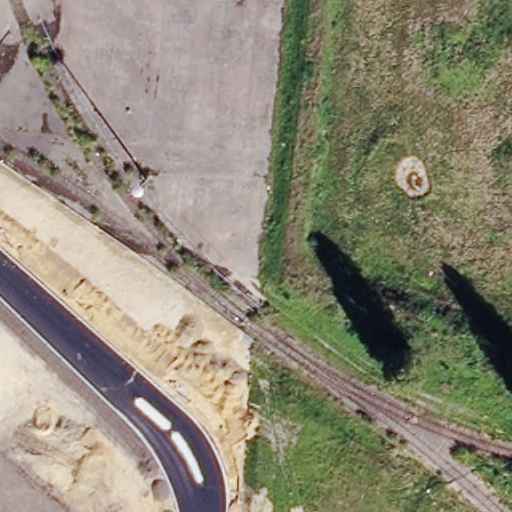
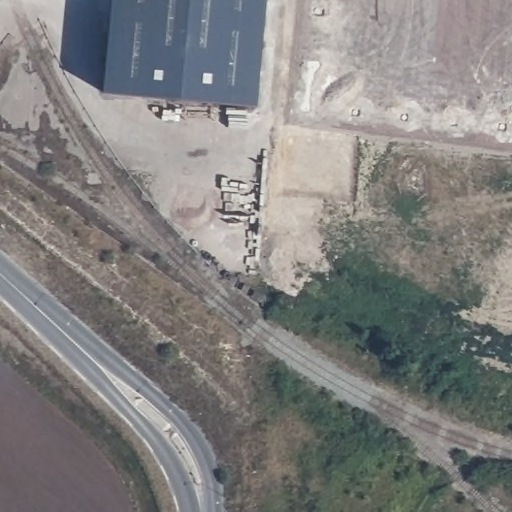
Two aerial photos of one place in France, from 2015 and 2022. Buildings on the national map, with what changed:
new [(265,0),(256,104),(103,92),(111,0),(265,0)]
demolished [(63,512),(0,512),(0,457),(63,512)]

